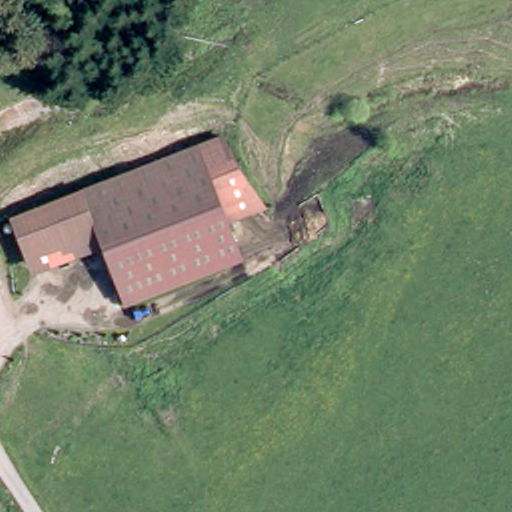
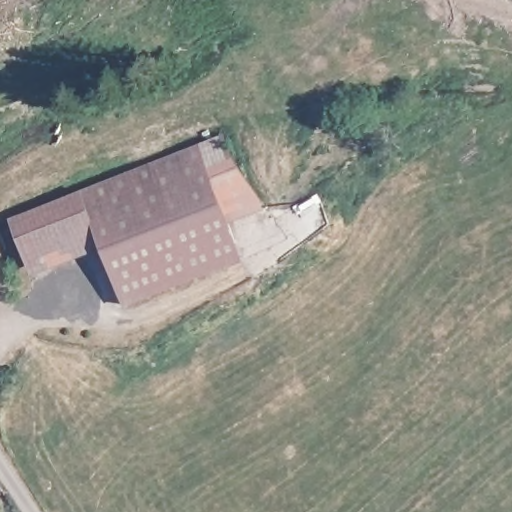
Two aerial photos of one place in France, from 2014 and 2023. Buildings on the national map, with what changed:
unchanged [(128,301),(105,242),(83,186),(216,134),(222,132),(231,147),(269,203),(231,217),(246,255),(173,283),(128,301)]
unchanged [(83,186),(105,242),(35,269),(13,214),(83,186)]

